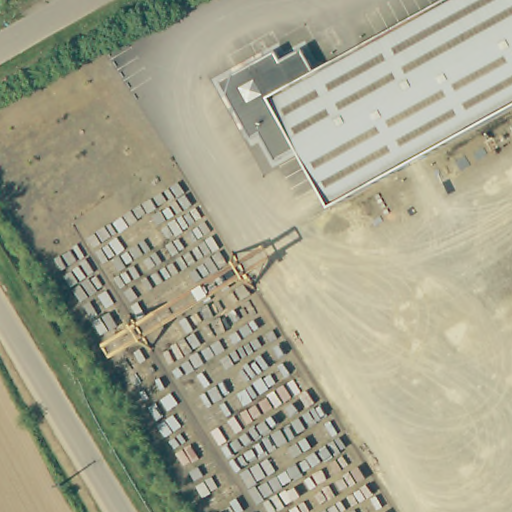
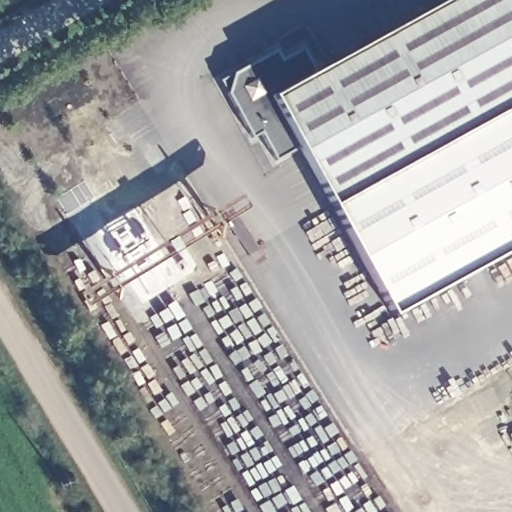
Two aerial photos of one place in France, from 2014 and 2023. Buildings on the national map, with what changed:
unchanged [(261,130),(252,135),(231,97),(237,73),(278,52),(282,60),(302,49),(316,74),(454,0),(512,0),(512,107),(330,206),(298,149),(277,161),(261,130)]
new [(512,107),(512,250),(392,317),(330,206),(512,107)]

